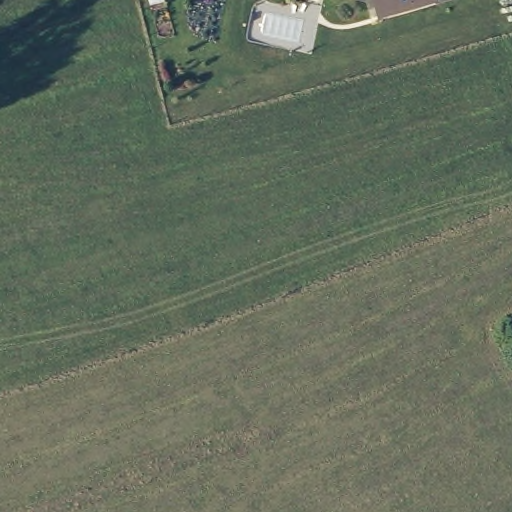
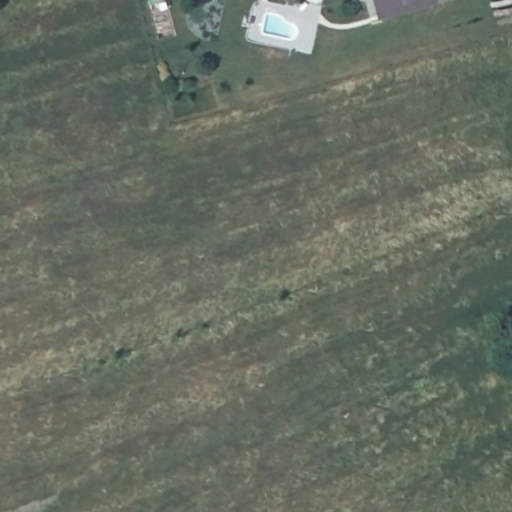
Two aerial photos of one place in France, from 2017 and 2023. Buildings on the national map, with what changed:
unchanged [(377,18),(370,0),(434,0),(435,1),(377,18)]

